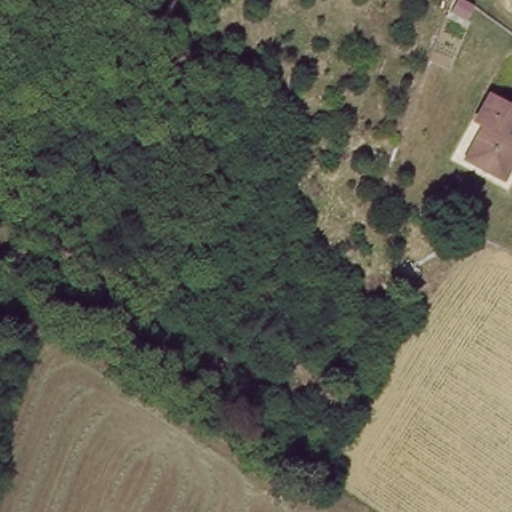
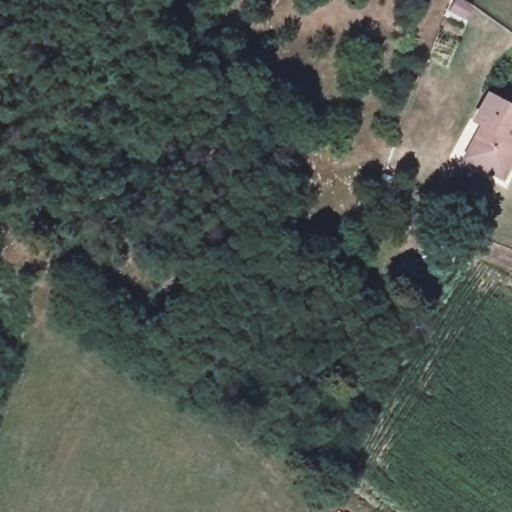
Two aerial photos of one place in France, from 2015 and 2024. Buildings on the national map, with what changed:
unchanged [(466,157),(485,123),(475,118),(490,92),(512,105),(512,162),(504,178),(494,172),(466,157)]

